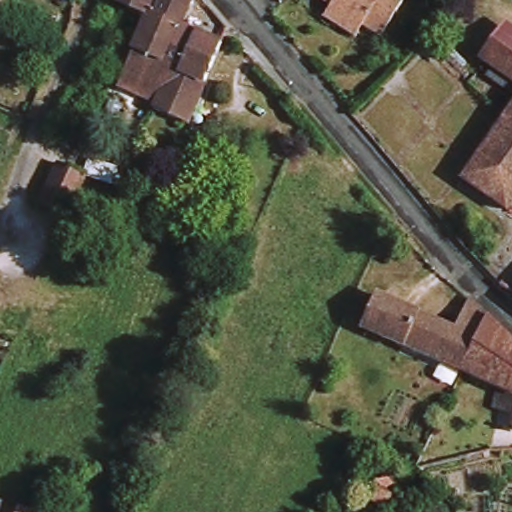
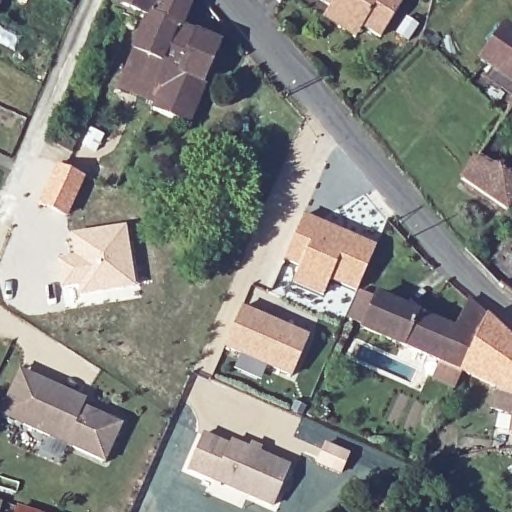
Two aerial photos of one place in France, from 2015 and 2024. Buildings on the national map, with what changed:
unchanged [(3,0),(0,6),(0,0),(3,0)]
unchanged [(164,0),(155,17),(153,17),(137,11),(116,2),(118,0),(164,0)]
unchanged [(157,108),(161,101),(124,85),(127,78),(151,25),(153,17),(155,17),(164,0),(197,0),(185,25),(226,45),(219,61),(216,61),(197,105),(190,122),(180,119),(157,108)]
unchanged [(336,6),(326,0),(408,0),(386,37),(368,26),(361,37),(329,17),(336,6)]
unchanged [(512,26),(512,76),(486,60),(509,25),(512,26)]
unchanged [(509,115),(512,111),(512,207),(467,180),(509,115)]
unchanged [(60,145),(53,141),(56,135),(64,140),(60,145)]
new [(91,175),(102,160),(124,175),(113,191),(91,175)]
unchanged [(63,167),(87,181),(66,219),(42,205),(63,167)]
new [(303,213),(378,244),(356,292),(330,282),(323,297),(290,283),(297,267),(282,260),(303,213)]
new [(71,254),(68,234),(126,224),(136,285),(78,296),(76,286),(63,288),(58,256),(71,254)]
unchanged [(462,373),(366,327),(380,296),(456,332),(471,300),(488,317),(462,373)]
new [(243,310),(310,339),(294,377),(226,349),(243,310)]
unchanged [(462,373),(488,317),(512,339),(512,395),(499,390),(462,373)]
new [(17,373),(82,402),(79,409),(37,390),(20,427),(0,418),(0,410),(17,373)]
new [(37,390),(79,409),(119,427),(102,465),(20,427),(37,390)]
unchanged [(499,390),(512,395),(512,418),(494,410),(499,390)]
unchanged [(512,431),(512,435),(511,435),(512,431)]
new [(201,436),(228,447),(230,443),(288,468),(271,507),(187,469),(201,436)]
unchanged [(365,486),(388,478),(391,482),(387,486),(395,495),(383,506),(365,486)]
unchanged [(22,505),(50,512),(20,512),(22,505)]

